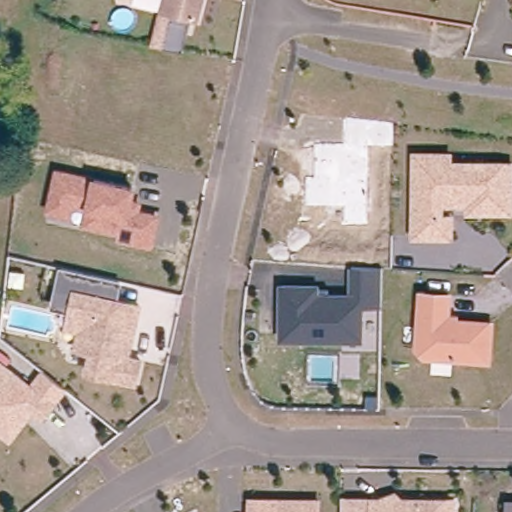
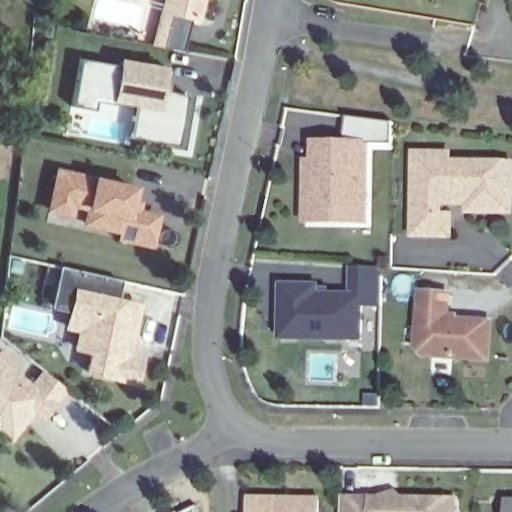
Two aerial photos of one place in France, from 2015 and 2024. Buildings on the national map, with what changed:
unchanged [(197,24),(163,14),(167,0),(203,0),(197,24)]
new [(129,137),(135,106),(115,102),(114,105),(96,102),(93,110),(72,107),(79,59),(117,65),(119,57),(166,66),(165,71),(170,72),(167,92),(187,96),(179,146),(129,137)]
new [(371,144),(370,224),(303,224),(303,158),(312,158),(312,137),(346,137),(348,116),(392,122),(392,142),(371,144)]
unchanged [(448,237),(433,237),(411,237),(412,154),(447,155),(447,168),(485,169),(485,163),(508,164),(508,206),(508,212),(466,212),(466,199),(452,199),(452,205),(433,204),(433,218),(448,218),(448,237)]
unchanged [(132,188),(127,210),(156,216),(149,246),(117,238),(119,231),(99,226),(102,211),(70,204),(67,213),(47,209),(55,171),(132,188)]
unchanged [(137,382),(89,372),(94,351),(77,347),(82,329),(69,326),(72,310),(56,306),(64,267),(116,278),(119,279),(122,280),(117,299),(123,301),(142,305),(134,338),(130,356),(142,359),(137,382)]
unchanged [(343,340),(330,340),(296,340),(282,339),(283,286),(318,287),(318,296),(353,296),(353,267),(383,268),(382,307),(362,307),(362,335),(362,341),(343,340)]
unchanged [(450,296),(448,321),(492,324),(490,361),(427,356),(419,348),(422,295),(450,296)]
unchanged [(43,372),(52,380),(65,388),(52,405),(41,418),(32,411),(27,417),(7,441),(0,434),(0,364),(31,387),(43,372)]
unchanged [(317,498),(317,512),(250,512),(250,497),(317,498)]
unchanged [(342,512),(342,499),(358,500),(456,501),(455,512),(342,512)]
new [(198,512),(191,512),(198,508),(198,512)]

